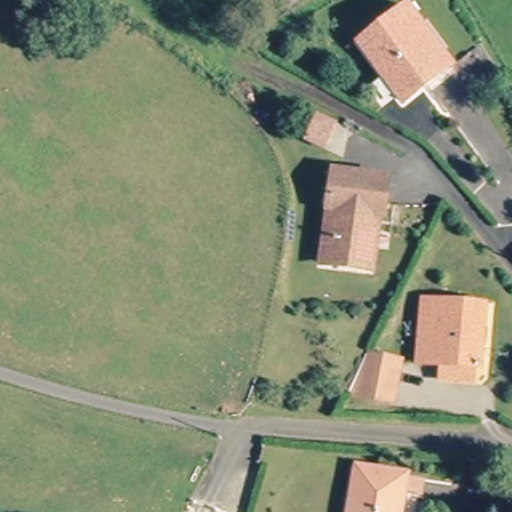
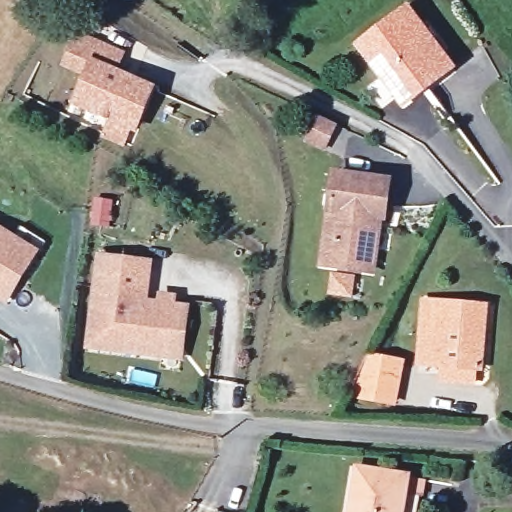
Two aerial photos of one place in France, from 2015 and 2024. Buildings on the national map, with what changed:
unchanged [(450,70),(406,105),(362,49),(411,10),(423,25),(419,29),(450,70)]
new [(99,136),(107,121),(69,105),(81,77),(60,67),(76,31),(125,52),(118,70),(155,86),(135,135),(130,132),(123,147),(99,136)]
unchanged [(368,265),(324,261),(335,172),(386,181),(383,212),(379,267),(368,265)]
unchanged [(43,244),(22,278),(0,264),(0,216),(43,244)]
new [(190,349),(176,347),(98,337),(109,248),(159,254),(154,294),(169,296),(170,288),(183,290),(182,297),(196,299),(190,349)]
unchanged [(419,363),(422,299),(488,305),(485,369),(480,368),(479,384),(444,381),(445,366),(419,363)]
unchanged [(366,360),(405,367),(398,408),(347,400),(366,360)]
unchanged [(407,492),(423,496),(419,512),(374,512),(348,507),(351,493),(368,469),(411,477),(407,492)]
unchanged [(347,512),(348,507),(374,512),(347,512)]

